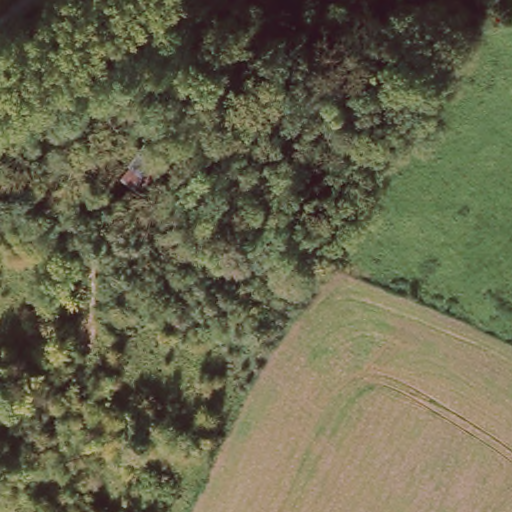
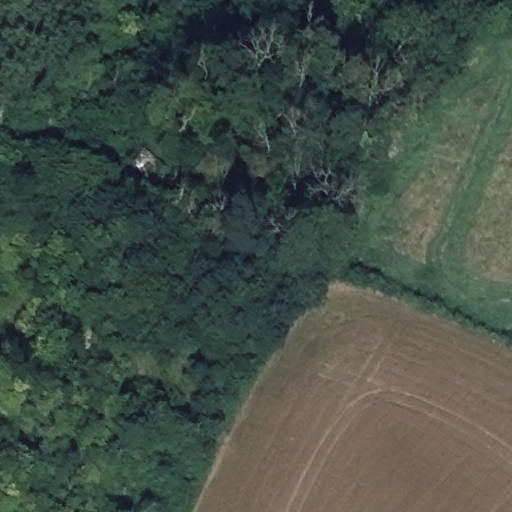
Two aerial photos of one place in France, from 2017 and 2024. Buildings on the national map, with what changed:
unchanged [(143,153),(163,170),(140,196),(121,179),(143,153)]

